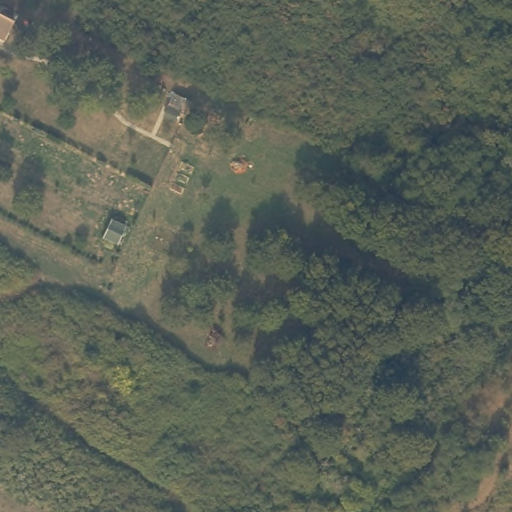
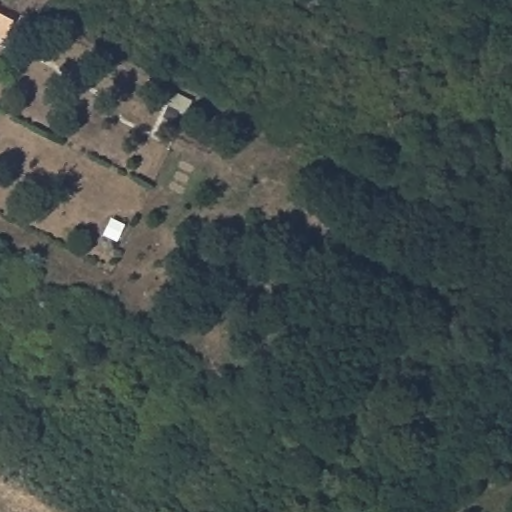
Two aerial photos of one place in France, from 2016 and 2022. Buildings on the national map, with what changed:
unchanged [(6,40),(0,37),(0,10),(17,19),(6,40)]

